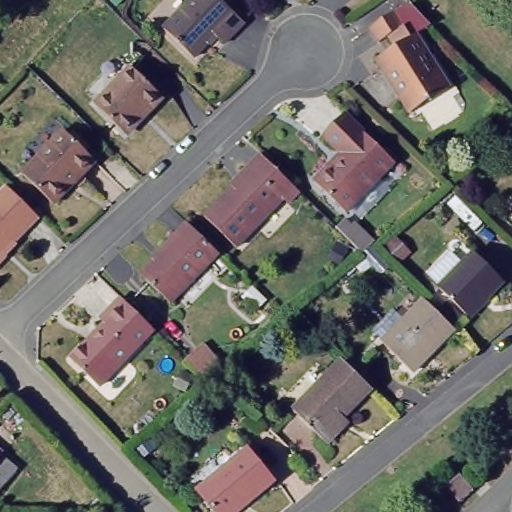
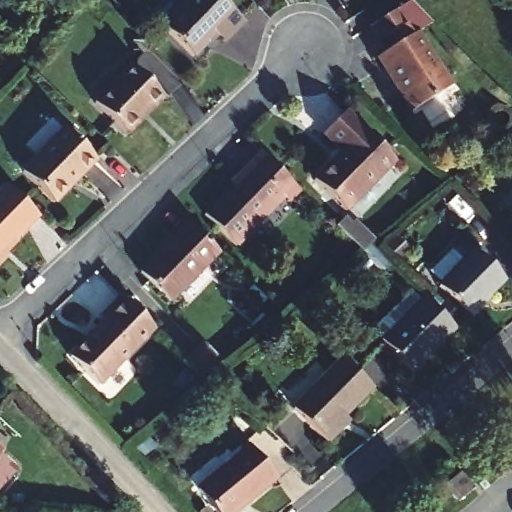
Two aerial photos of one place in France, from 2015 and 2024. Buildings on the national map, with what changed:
unchanged [(218,0),(241,22),(221,42),(212,33),(190,55),(161,26),(186,0),(218,0)]
unchanged [(420,29),(452,83),(416,105),(384,51),(401,41),(395,30),(384,36),(374,20),(385,14),(401,5),(417,31),(420,29)]
unchanged [(134,67),(166,99),(150,114),(148,111),(126,132),(97,104),(134,67)]
unchanged [(346,147),(327,130),(348,107),(398,155),(350,206),(319,176),(346,147)]
unchanged [(66,130),(97,160),(54,202),(24,172),(66,130)]
unchanged [(282,200),(233,247),(203,216),(251,170),(249,166),(261,155),(299,192),(286,205),(282,200)]
unchanged [(1,250),(3,252),(0,255),(0,189),(5,185),(36,216),(1,250)]
unchanged [(217,254),(167,302),(139,273),(151,261),(149,258),(185,222),(217,254)]
unchanged [(340,232),(351,223),(369,241),(358,251),(340,232)]
unchanged [(475,253),(504,281),(470,317),(440,288),(475,253)]
unchanged [(264,300),(253,311),(238,297),(249,285),(264,300)]
unchanged [(151,330),(95,386),(67,358),(102,325),(97,320),(119,298),(151,330)]
unchanged [(454,331),(414,371),(383,342),(424,301),(454,331)]
unchanged [(218,363),(201,380),(183,362),(199,345),(218,363)]
unchanged [(366,385),(333,419),(339,425),(323,440),(290,406),(338,357),(366,385)]
unchanged [(25,431),(2,406),(0,405),(0,392),(6,386),(13,395),(38,421),(25,431)]
unchanged [(1,453),(17,470),(0,489),(0,449),(1,453)]
unchanged [(246,450),(272,478),(234,512),(215,512),(198,492),(246,450)]
unchanged [(445,483),(459,472),(473,488),(460,500),(445,483)]

